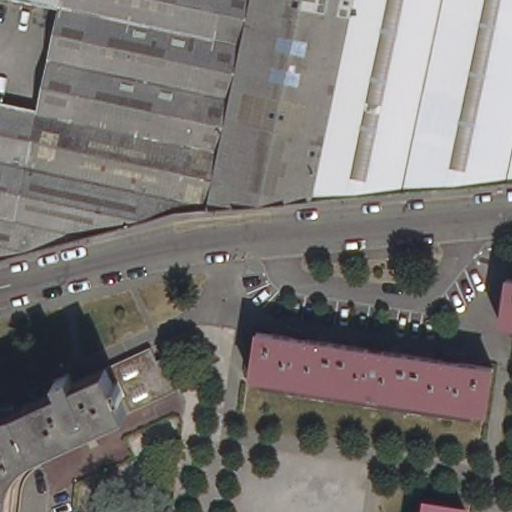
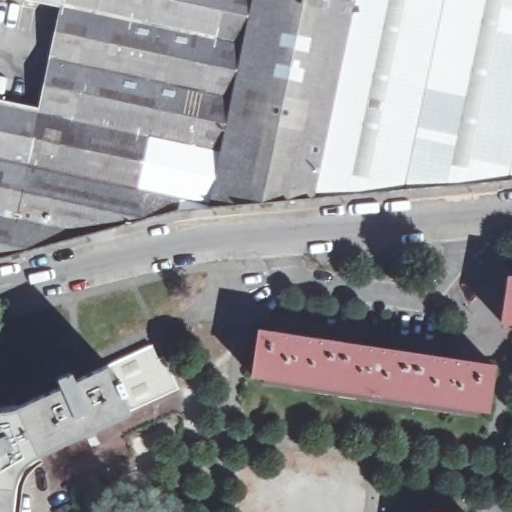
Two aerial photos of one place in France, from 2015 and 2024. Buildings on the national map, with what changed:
unchanged [(312,193),(311,198),(177,210),(0,258),(0,101),(74,116),(95,11),(33,0),(351,0),(312,193)]
unchanged [(512,180),(323,197),(311,198),(312,193),(351,0),(512,0),(512,180)]
unchanged [(507,276),(512,277),(512,323),(501,321),(507,276)]
unchanged [(258,330),(296,335),(308,337),(337,342),(342,342),(370,347),(382,348),(411,353),(416,354),(445,358),(457,360),(495,365),(488,410),(252,374),(258,330)]
unchanged [(70,371),(75,380),(153,345),(159,358),(164,356),(178,388),(40,452),(33,455),(24,464),(18,473),(14,483),(11,512),(0,512),(0,407),(10,407),(15,405),(16,407),(61,387),(57,377),(70,371)]

